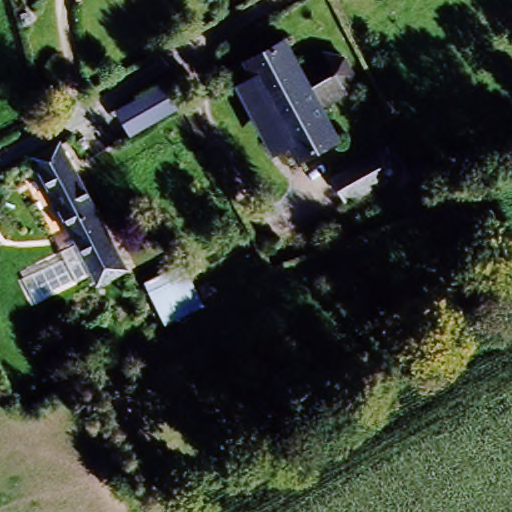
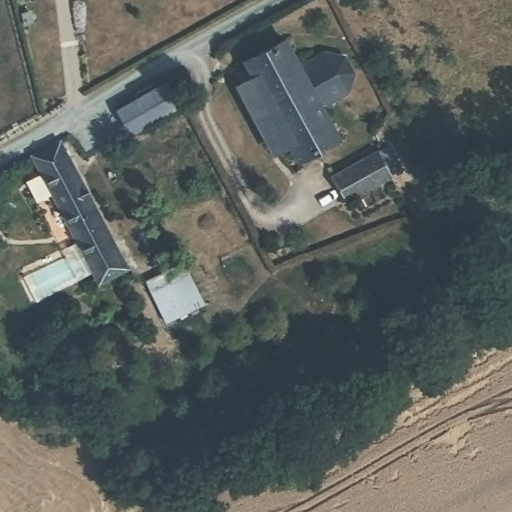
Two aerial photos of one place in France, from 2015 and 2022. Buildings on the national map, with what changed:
unchanged [(333,144),(293,163),(244,69),(284,46),(296,66),(331,50),(344,57),(351,69),(356,90),(319,113),(333,144)]
unchanged [(186,110),(128,139),(113,111),(171,80),(186,110)]
unchanged [(102,283),(35,152),(63,139),(132,268),(102,283)]
unchanged [(397,176),(337,206),(324,182),(384,152),(397,176)]
unchanged [(199,307),(160,326),(138,283),(181,263),(199,307)]

